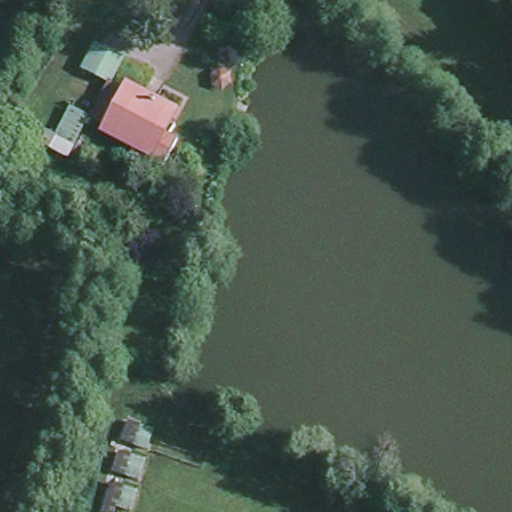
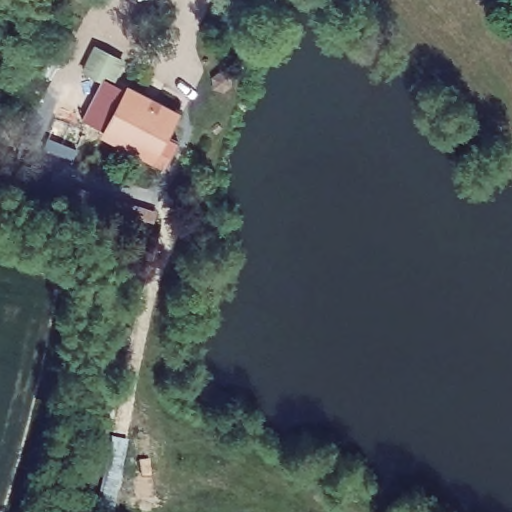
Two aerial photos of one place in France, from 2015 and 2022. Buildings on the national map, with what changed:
unchanged [(115,84),(122,89),(109,126),(92,116),(107,83),(81,69),(95,42),(126,58),(115,84)]
unchanged [(180,104),(155,162),(104,139),(109,126),(122,89),(127,79),(180,104)]
unchanged [(72,160),(42,144),(48,130),(57,134),(70,108),(90,118),(72,160)]
unchanged [(150,448),(123,439),(129,419),(156,428),(150,448)]
unchanged [(142,478),(114,471),(120,451),(147,459),(142,478)]
unchanged [(133,511),(119,509),(105,512),(103,512),(111,482),(138,489),(133,511)]

